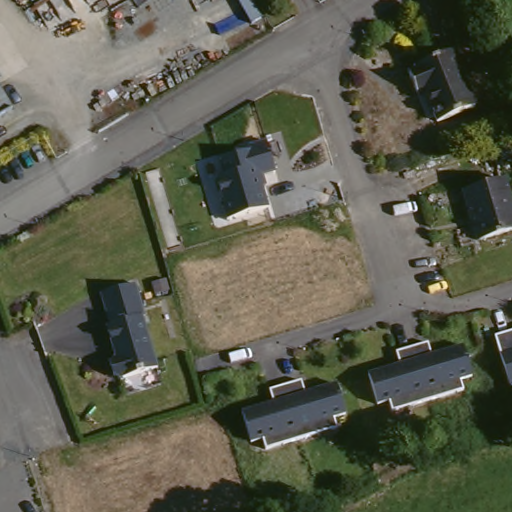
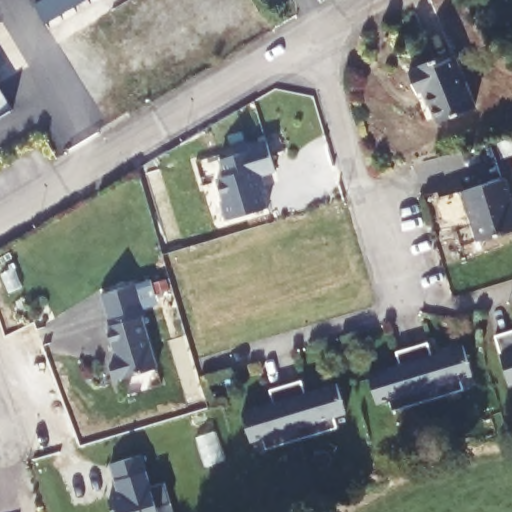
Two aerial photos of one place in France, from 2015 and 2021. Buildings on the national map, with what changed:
unchanged [(448,51),(469,108),(429,120),(416,89),(407,94),(399,69),(448,51)]
unchanged [(14,111),(0,119),(0,83),(14,111)]
unchanged [(276,169),(260,174),(269,205),(228,218),(221,198),(224,198),(218,176),(226,174),(221,158),(251,149),(249,145),(267,139),(276,169)]
unchanged [(458,197),(501,184),(512,221),(512,234),(473,246),(458,197)]
unchanged [(111,328),(102,296),(136,286),(146,319),(143,319),(157,370),(119,381),(114,378),(110,366),(114,360),(116,359),(107,329),(111,328)]
unchanged [(497,341),(512,336),(512,385),(509,386),(494,337),(496,336),(497,341)]
unchanged [(404,350),(427,343),(431,356),(463,346),(471,377),(460,380),(463,391),(420,404),(391,413),(388,402),(376,405),(368,375),(399,365),(395,353),(404,350)]
unchanged [(276,404),(273,391),(304,381),(309,394),(340,385),(349,415),(338,419),(341,429),(268,451),(265,440),(254,444),(244,413),(276,404)]
new [(119,480),(116,480),(111,463),(141,455),(151,487),(164,483),(170,504),(156,507),(157,512),(112,512),(108,498),(123,494),(119,480)]

